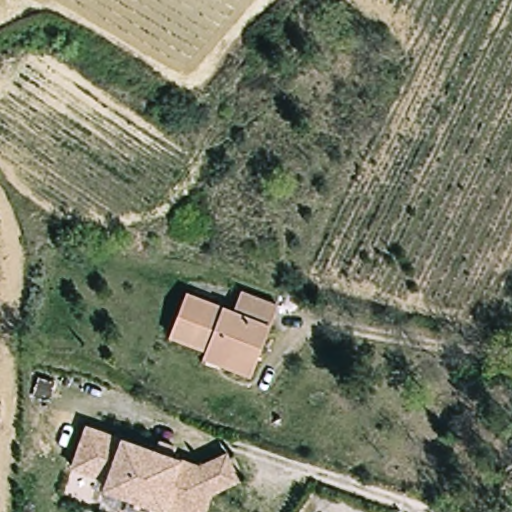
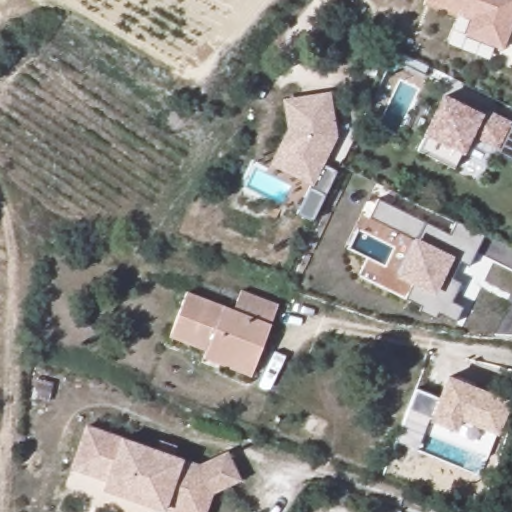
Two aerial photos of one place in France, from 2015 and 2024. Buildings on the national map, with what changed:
new [(502,47),(465,32),(471,17),(429,0),(512,0),(512,20),(502,47)]
new [(461,97),(479,106),(512,122),(512,158),(489,147),(492,141),(468,129),(451,165),(414,147),(440,93),(458,102),(461,97)]
new [(290,131),(285,102),(325,95),(332,138),(318,165),(333,172),(309,223),(293,215),(307,186),(272,169),(274,164),(290,131)]
new [(412,283),(395,275),(413,239),(370,218),(379,199),(425,222),(450,234),(457,222),(484,235),(469,267),(459,262),(451,278),(461,283),(451,301),(463,308),(455,322),(437,313),(434,318),(419,309),(421,305),(406,298),(412,283)]
unchanged [(209,353),(211,345),(192,339),(210,295),(237,304),(244,285),(284,299),(264,351),(258,368),(209,353)]
unchanged [(172,332),(187,288),(210,295),(192,339),(172,332)]
new [(510,403),(497,435),(461,420),(457,430),(429,420),(416,449),(395,439),(415,387),(438,397),(448,374),(510,403)]
unchanged [(157,501),(155,506),(98,485),(102,475),(69,463),(82,422),(196,462),(225,451),(235,478),(205,490),(202,498),(197,512),(186,512),(180,510),(157,501)]

